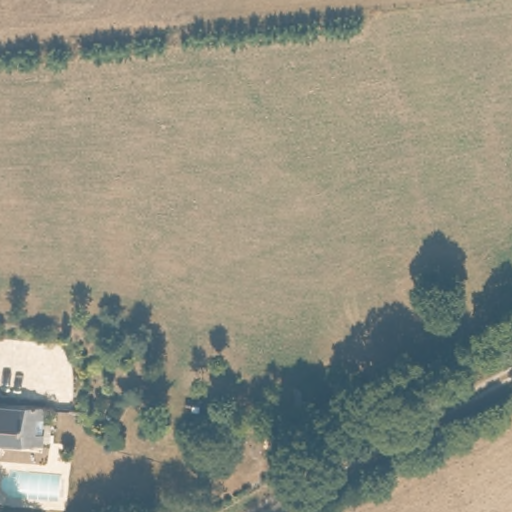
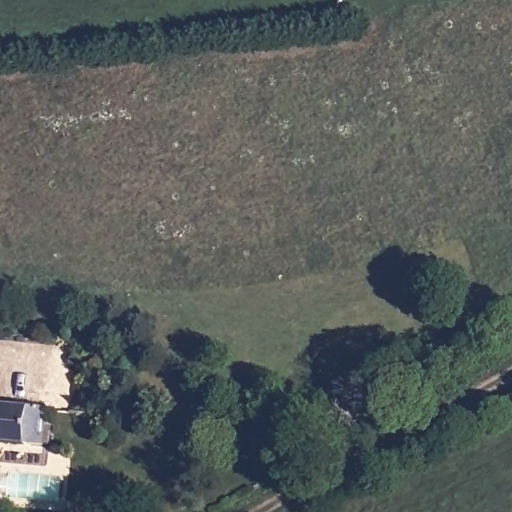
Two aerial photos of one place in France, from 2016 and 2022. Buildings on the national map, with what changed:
unchanged [(47,399),(46,416),(45,438),(0,434),(0,395),(47,399)]

